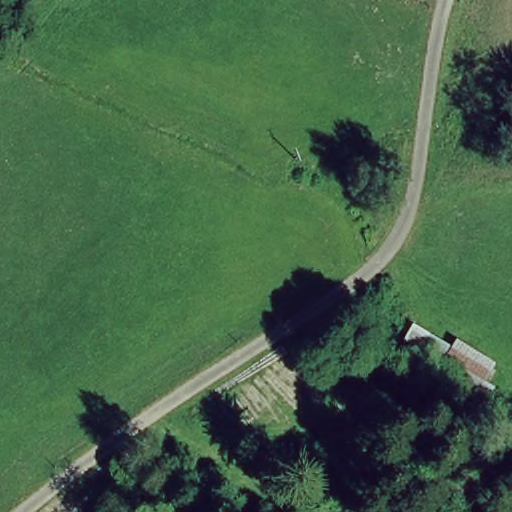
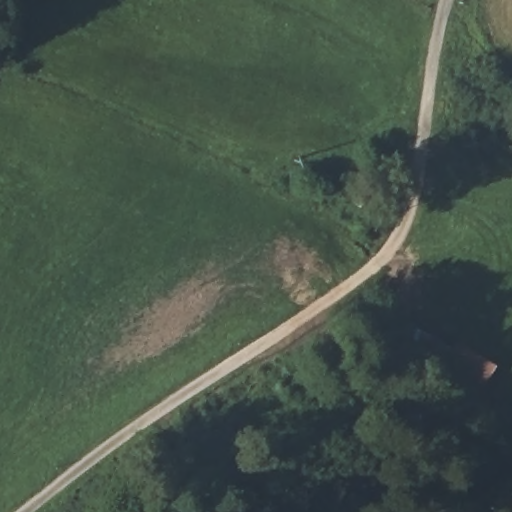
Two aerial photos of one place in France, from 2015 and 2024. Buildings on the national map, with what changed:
unchanged [(450,348),(453,342),(493,365),(473,401),(398,355),(413,326),(450,348)]

